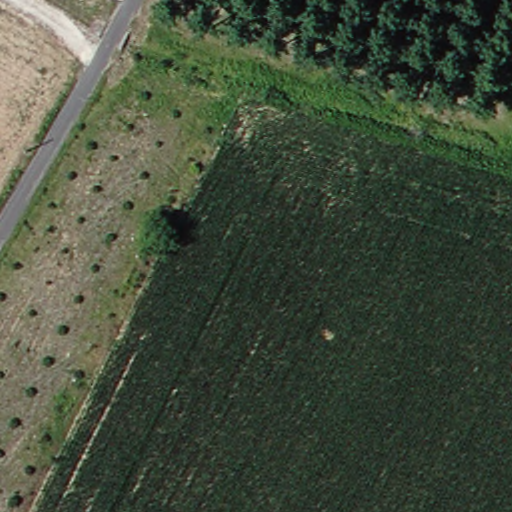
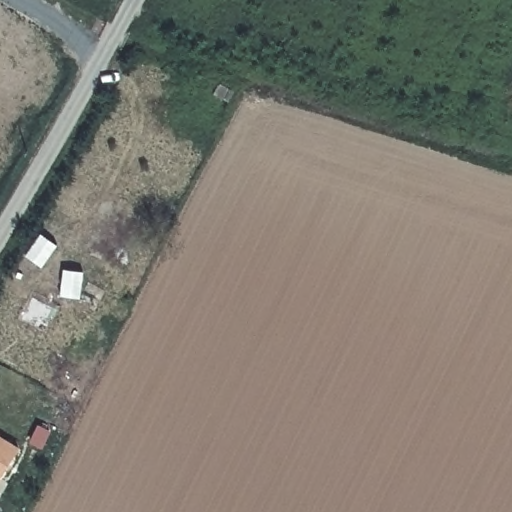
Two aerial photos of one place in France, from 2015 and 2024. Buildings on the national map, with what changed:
new [(0,479),(0,436),(20,447),(0,479)]

